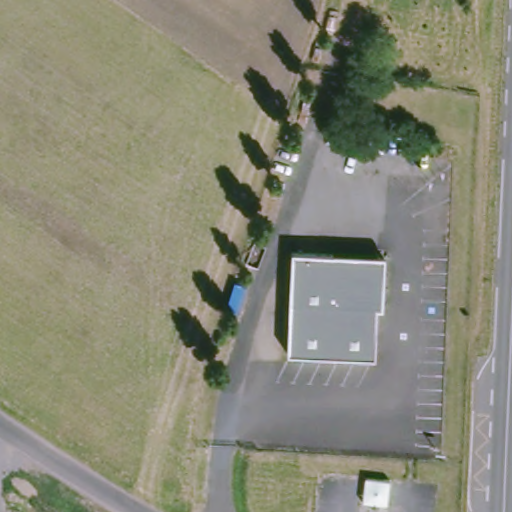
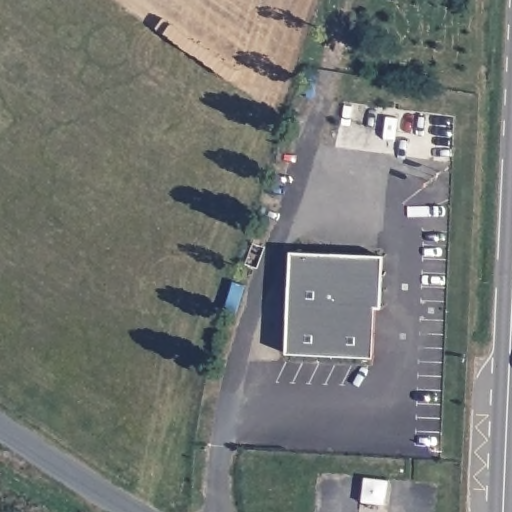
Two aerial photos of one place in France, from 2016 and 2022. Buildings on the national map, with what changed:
unchanged [(290,251),(308,252),(382,256),(380,308),(376,308),(372,357),(285,353),(286,319),(290,251)]

